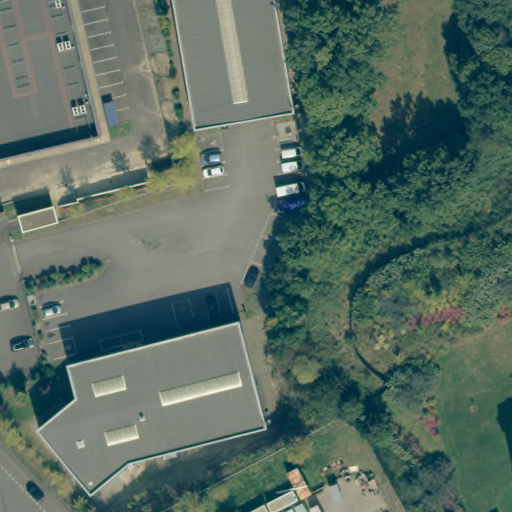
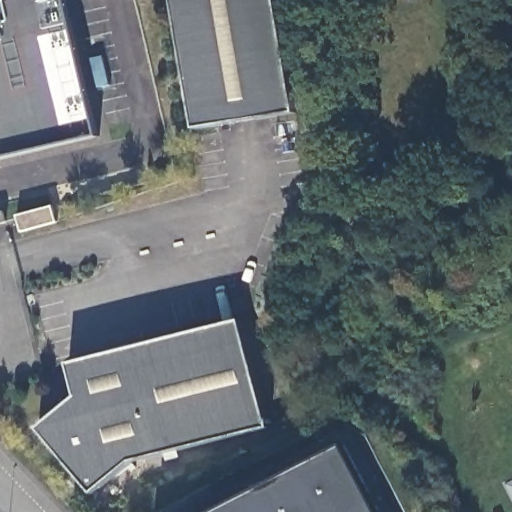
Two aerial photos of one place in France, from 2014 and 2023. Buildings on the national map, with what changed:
unchanged [(0,154),(0,0),(67,0),(97,129),(0,154)]
unchanged [(295,113),(219,126),(195,130),(173,0),(275,0),(295,113)]
unchanged [(57,223),(22,235),(17,217),(52,206),(57,223)]
unchanged [(0,217),(5,216),(8,227),(0,229),(0,217)]
unchanged [(127,463),(89,495),(34,430),(64,406),(73,398),(64,365),(235,320),(263,428),(127,463)]
new [(376,512),(218,512),(342,445),(376,512)]

